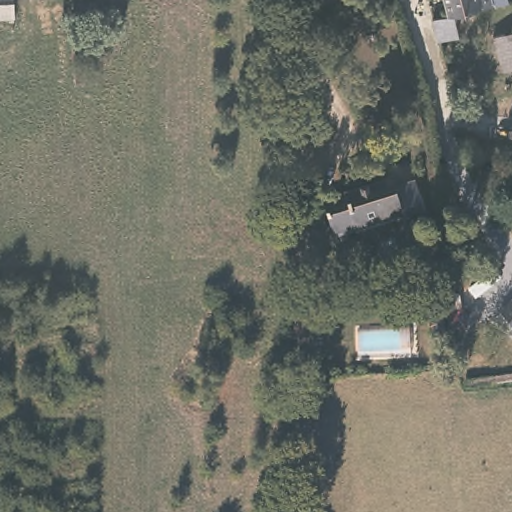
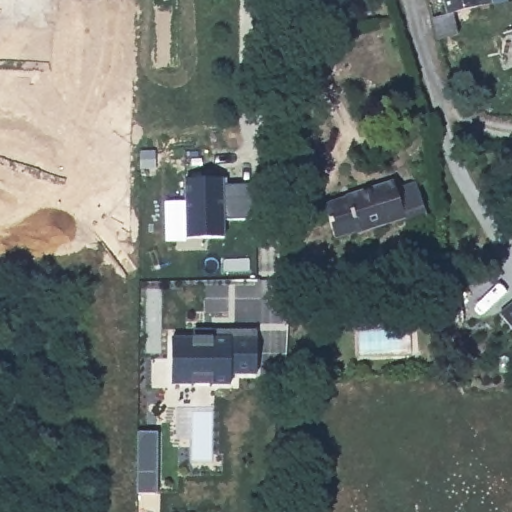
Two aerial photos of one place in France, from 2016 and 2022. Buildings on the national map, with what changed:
unchanged [(19,9),(0,10),(0,0),(18,0),(19,9)]
demolished [(57,12),(35,14),(35,0),(56,0),(57,12)]
unchanged [(440,34),(438,35),(432,12),(447,9),(445,0),(482,0),(455,7),(460,29),(440,34)]
unchanged [(493,37),(512,31),(512,68),(504,71),(493,37)]
new [(220,177),(221,184),(252,184),(253,218),(221,219),(222,237),(185,237),(183,178),(220,177)]
unchanged [(429,218),(407,224),(405,217),(332,238),(322,204),(344,197),(345,194),(393,182),(397,187),(417,182),(429,218)]
unchanged [(447,332),(438,332),(431,328),(428,312),(443,309),(447,332)]
new [(171,337),(191,336),(191,329),(256,328),(257,375),(230,374),(230,385),(171,385),(171,337)]
new [(157,431),(157,493),(136,493),(136,431),(157,431)]

